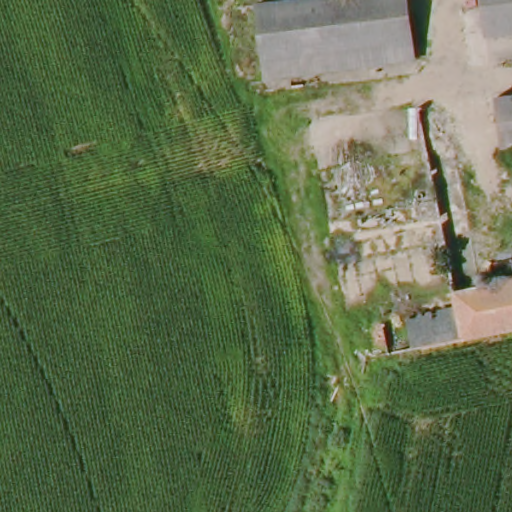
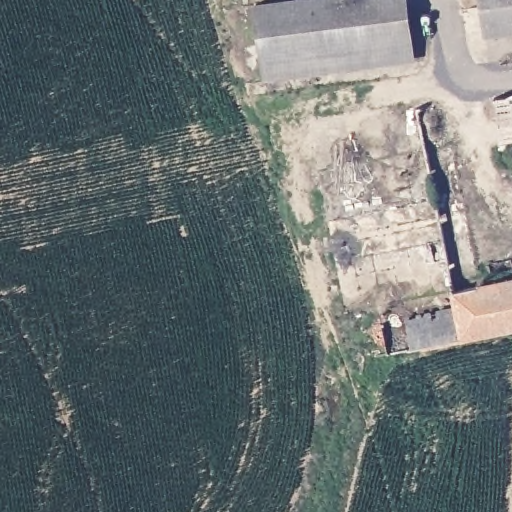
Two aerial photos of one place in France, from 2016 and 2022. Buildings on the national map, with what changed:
unchanged [(251,5),(296,0),(400,0),(405,47),(406,61),(258,76),(256,65),(250,5),(251,5)]
unchanged [(484,31),(481,0),(512,0),(512,28),(484,31)]
unchanged [(502,144),(496,92),(512,91),(512,143),(502,144)]
unchanged [(452,338),(446,310),(443,288),(512,276),(512,327),(452,338)]
unchanged [(452,338),(400,350),(394,320),(446,310),(452,338)]

